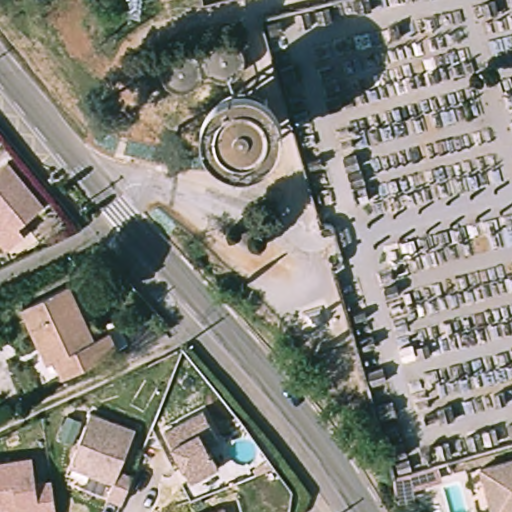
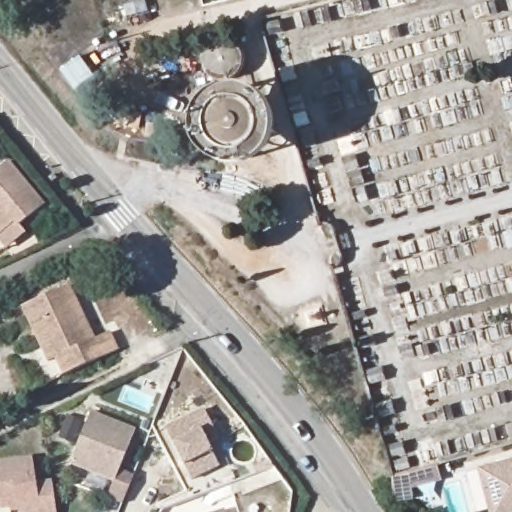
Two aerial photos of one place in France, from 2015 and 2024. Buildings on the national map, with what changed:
unchanged [(48,201),(23,222),(20,219),(0,234),(0,168),(12,158),(48,201)]
unchanged [(55,358),(48,361),(22,307),(66,285),(93,338),(110,331),(120,349),(64,376),(55,358)]
unchanged [(211,406),(226,435),(213,440),(226,463),(189,481),(164,430),(211,406)]
unchanged [(136,428),(115,481),(71,462),(92,410),(136,428)]
unchanged [(0,509),(0,461),(33,457),(38,482),(53,480),(58,512),(19,512),(18,507),(0,509)]
unchanged [(512,462),(512,512),(489,512),(479,472),(512,462)]
unchanged [(226,512),(201,512),(223,504),(226,512)]

